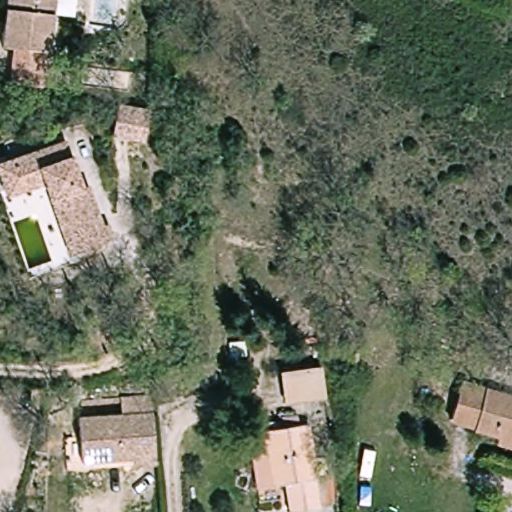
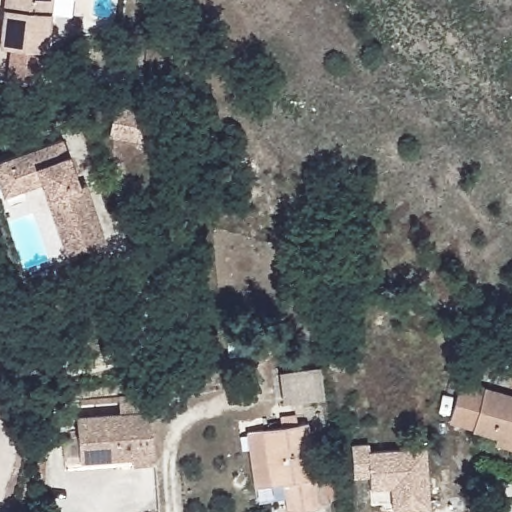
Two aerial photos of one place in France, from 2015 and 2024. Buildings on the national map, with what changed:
unchanged [(39,45),(8,40),(1,38),(8,0),(54,0),(45,46),(39,45)]
unchanged [(8,40),(39,45),(31,80),(1,75),(8,40)]
unchanged [(139,141),(106,135),(112,103),(144,108),(139,141)]
unchanged [(38,182),(0,193),(0,157),(9,154),(61,137),(75,186),(82,183),(94,219),(101,240),(70,249),(61,252),(49,216),(38,182)]
unchanged [(279,371),(319,369),(321,398),(281,400),(279,371)]
unchanged [(512,395),(512,444),(473,435),(470,432),(470,427),(452,423),(461,384),(512,395)]
unchanged [(66,462),(63,431),(78,430),(77,413),(122,410),(121,393),(150,391),(152,419),(155,456),(133,457),(132,451),(121,451),(121,459),(66,462)]
unchanged [(315,428),(322,509),(292,510),(290,482),(275,483),(271,431),(315,428)]
unchanged [(255,487),(246,436),(271,431),(275,483),(255,487)]
new [(392,491),(392,487),(371,489),(370,477),(354,478),(352,446),(369,445),(370,453),(425,449),(429,507),(407,508),(393,510),(392,491)]

